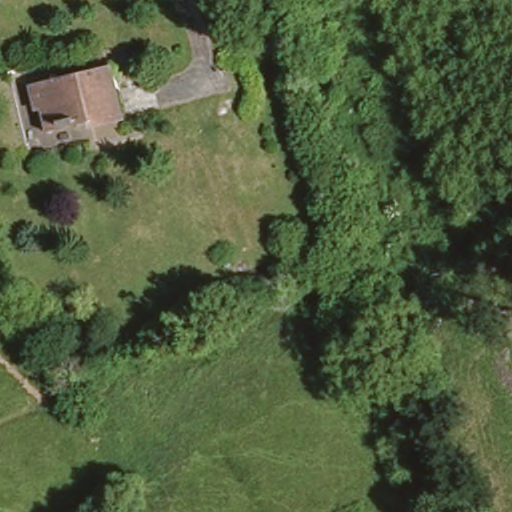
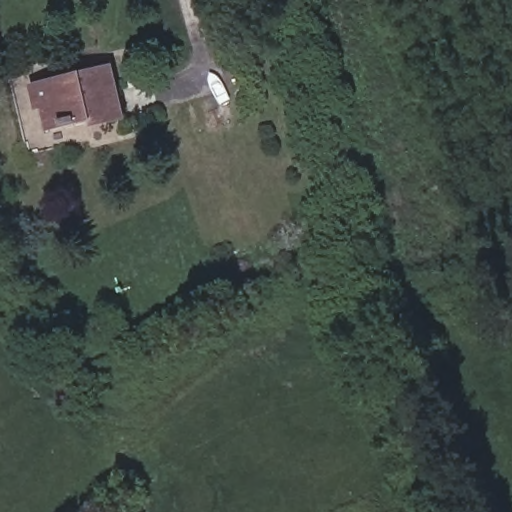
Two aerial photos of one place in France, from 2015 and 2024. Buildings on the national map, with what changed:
unchanged [(124,110),(96,116),(94,108),(48,119),(44,102),(28,105),(22,80),(112,59),(124,110)]

